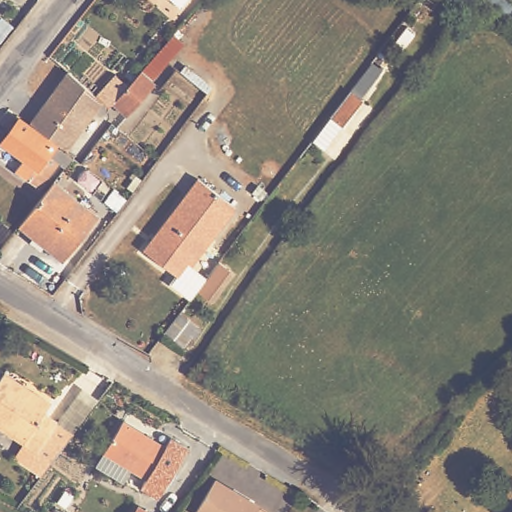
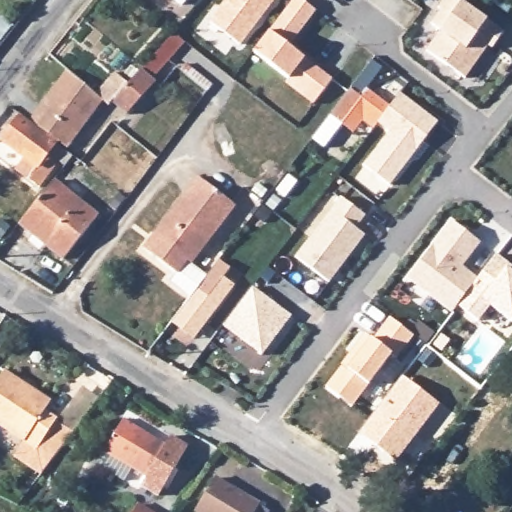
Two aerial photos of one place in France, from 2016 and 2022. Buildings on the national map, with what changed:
unchanged [(180,7),(172,0),(186,0),(180,7)]
new [(228,0),(277,0),(241,48),(209,24),(228,0)]
new [(269,32),(293,0),(299,0),(316,13),(291,49),(306,60),(332,80),(313,107),(284,85),(288,81),(252,54),(269,32)]
new [(439,33),(430,27),(439,12),(437,9),(443,0),(457,0),(503,33),(492,51),(488,49),(466,82),(426,53),(439,33)]
unchanged [(96,94),(115,72),(128,84),(139,71),(140,70),(157,51),(173,33),(183,42),(168,60),(152,80),(156,83),(129,115),(113,101),(109,105),(102,100),(67,148),(58,142),(29,121),(67,69),(75,76),(96,94)]
unchanged [(208,93),(181,71),(186,65),(213,87),(208,93)]
unchanged [(373,88),(354,115),(341,106),(343,102),(361,79),(373,88)]
new [(388,134),(378,126),(373,132),(363,124),(355,137),(341,126),(323,150),(311,141),(338,104),(341,106),(354,115),(369,93),(389,107),(400,94),(437,123),(389,188),(363,167),(388,134)]
unchanged [(65,259),(20,224),(24,219),(47,191),(31,178),(38,168),(2,142),(20,118),(56,144),(74,158),(54,183),(98,218),(65,259)]
unchanged [(237,207),(200,254),(196,252),(177,275),(144,250),(197,178),(237,207)]
new [(340,198),(366,217),(356,230),(364,237),(329,286),(294,259),(340,198)]
new [(451,221),(480,243),(462,267),(477,278),(496,255),(509,264),(507,268),(512,272),(512,326),(490,308),(478,322),(457,306),(450,314),(406,281),(451,221)]
new [(196,252),(200,254),(193,266),(208,277),(199,290),(210,299),(225,279),(235,288),(194,341),(171,323),(190,300),(170,284),(177,275),(196,252)]
unchanged [(231,270),(210,299),(199,290),(220,261),(231,270)]
new [(253,288),(291,318),(263,358),(222,328),(253,288)]
new [(341,368),(340,367),(365,335),(373,341),(389,318),(415,338),(397,361),(392,358),(352,409),(326,389),(341,368)]
unchanged [(0,431),(0,377),(1,375),(45,404),(39,414),(67,434),(36,475),(21,465),(8,456),(17,443),(0,431)]
new [(402,377),(440,406),(393,466),(356,435),(402,377)]
unchanged [(98,466),(105,453),(125,421),(167,446),(146,478),(134,470),(126,483),(98,466)]
unchanged [(211,458),(219,445),(227,450),(220,463),(211,458)]
unchanged [(249,501),(260,507),(269,512),(197,512),(214,482),(249,501)]
unchanged [(153,512),(141,512),(144,507),(153,512)]

